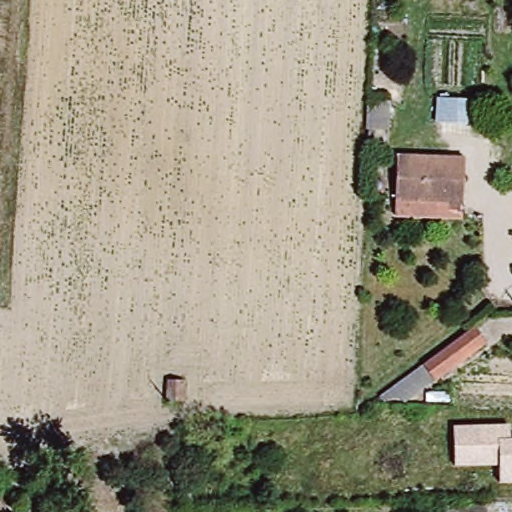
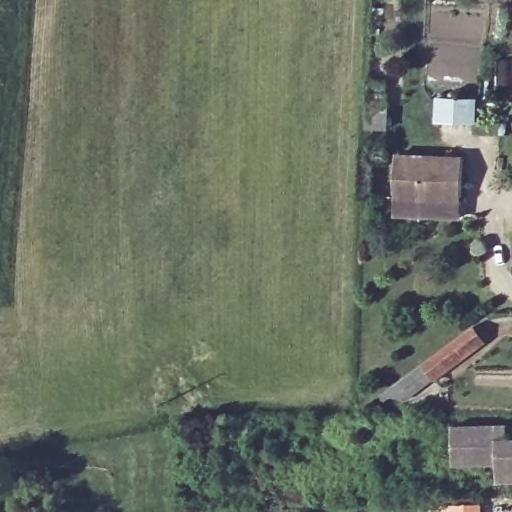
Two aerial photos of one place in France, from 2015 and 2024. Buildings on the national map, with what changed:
unchanged [(464,159),(461,205),(395,201),(398,154),(464,159)]
unchanged [(432,381),(388,409),(379,396),(471,325),(484,341),(432,381)]
unchanged [(507,425),(508,441),(512,440),(512,484),(498,485),(498,464),(454,466),(453,427),(507,425)]

